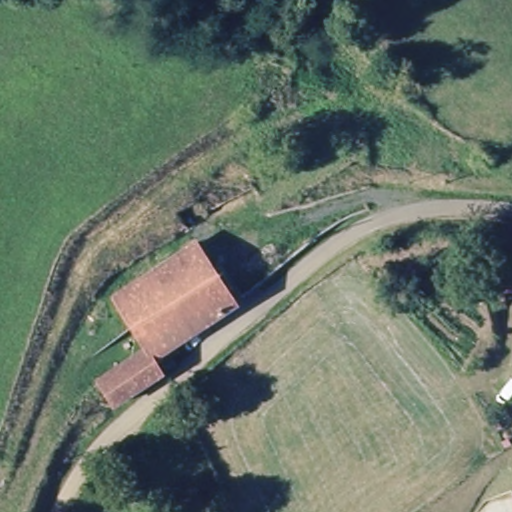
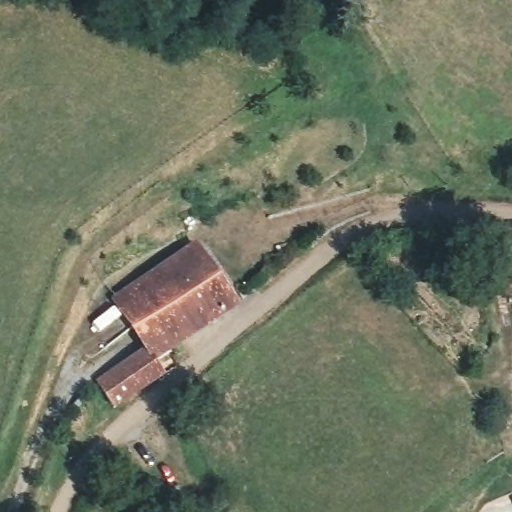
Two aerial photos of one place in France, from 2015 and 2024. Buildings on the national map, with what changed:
unchanged [(495,281),(500,222),(512,223),(512,294),(497,293),(495,281)]
unchanged [(100,377),(149,344),(119,295),(196,244),(236,302),(160,354),(169,370),(115,402),(100,377)]

